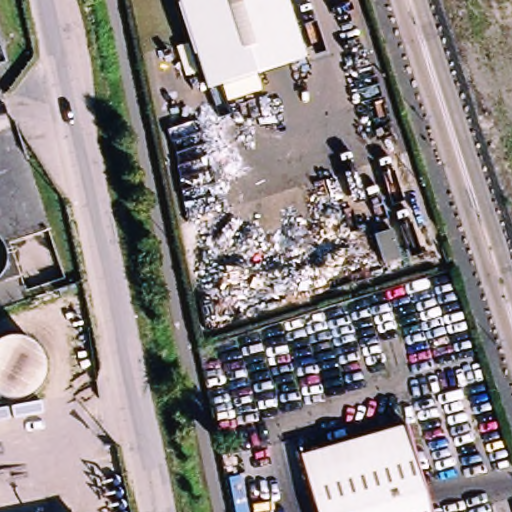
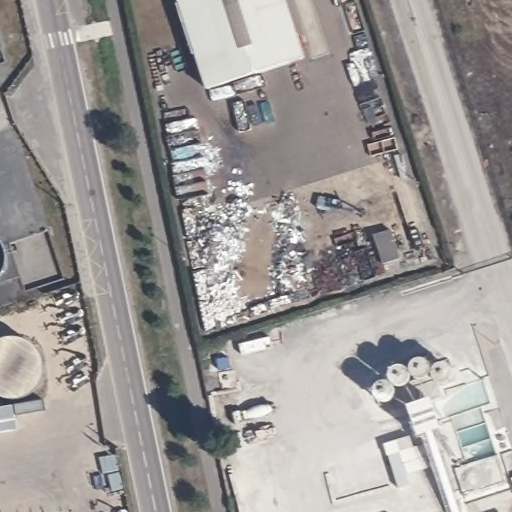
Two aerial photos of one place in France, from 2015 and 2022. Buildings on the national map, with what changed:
unchanged [(302,51),(201,83),(174,0),(286,0),(302,51)]
demolished [(405,429),(427,512),(315,512),(301,458),(405,429)]

